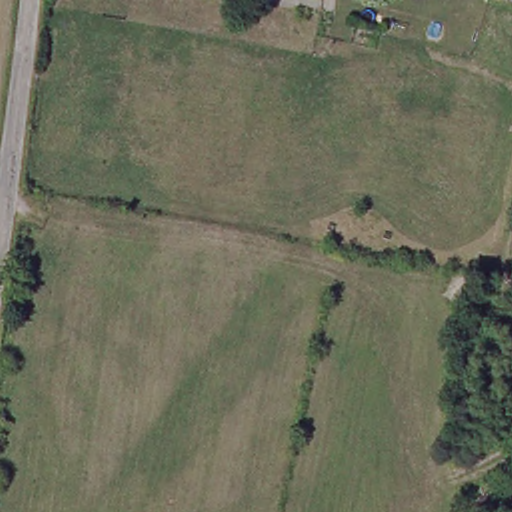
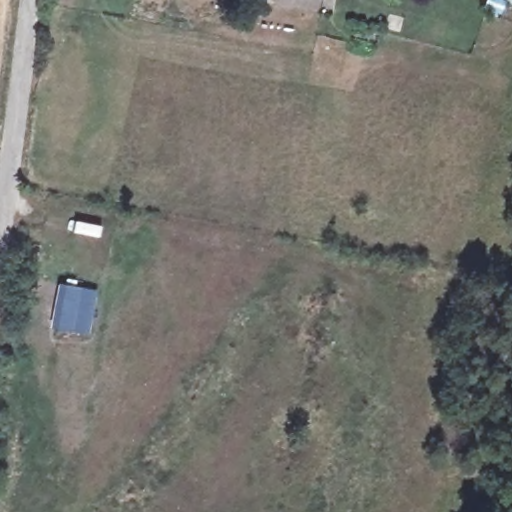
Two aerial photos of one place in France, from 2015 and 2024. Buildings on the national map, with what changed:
new [(59,281),(97,289),(89,333),(51,327),(59,281)]

